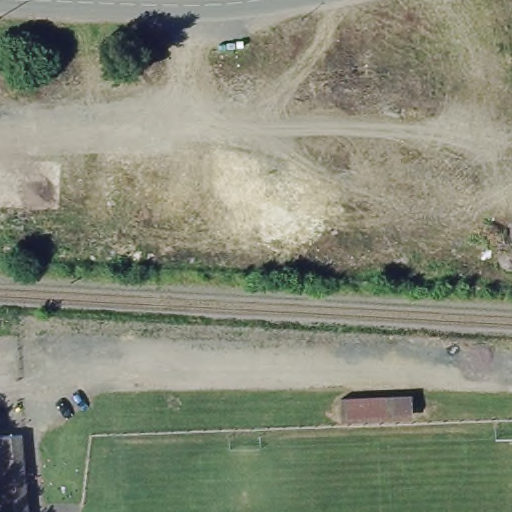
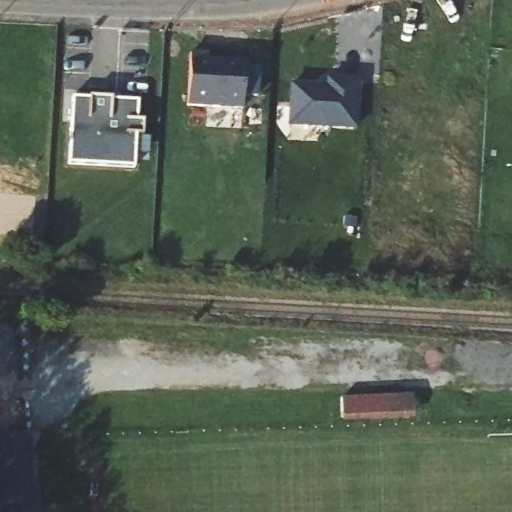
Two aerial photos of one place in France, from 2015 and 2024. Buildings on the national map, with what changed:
new [(206,53),(206,60),(245,62),(245,69),(261,68),(258,97),(242,100),(241,109),(187,106),(189,53),(206,53)]
new [(291,84),(325,86),(326,78),(359,80),(356,131),(287,127),(291,84)]
new [(70,95),(87,95),(88,94),(111,95),(111,96),(138,98),(136,117),(143,118),(143,134),(136,133),(134,166),(66,162),(70,95)]
unchanged [(339,391),(413,390),(413,414),(339,417),(339,391)]
unchanged [(17,492),(10,492),(9,512),(0,512),(0,430),(19,431),(17,492)]
unchanged [(33,431),(31,451),(26,512),(9,512),(10,492),(17,492),(19,431),(33,431)]

